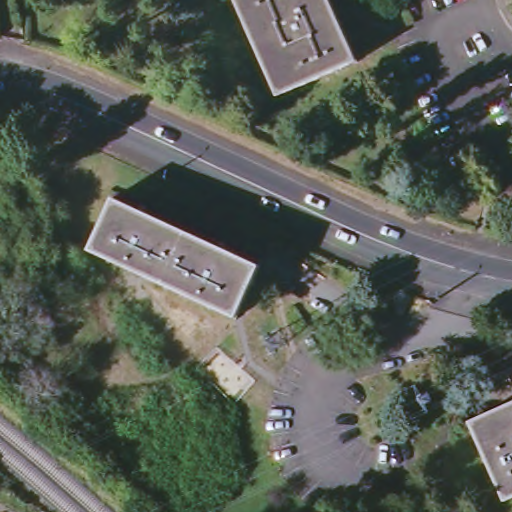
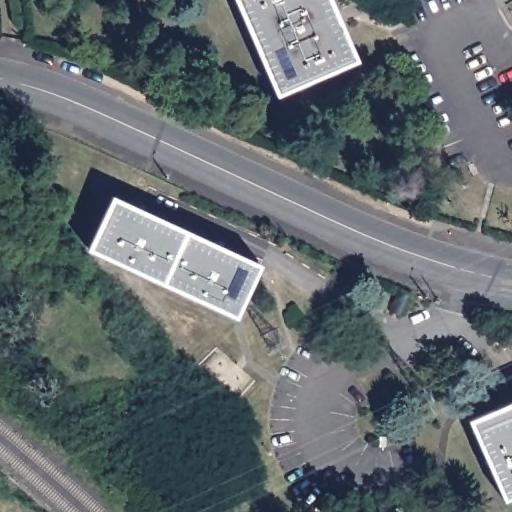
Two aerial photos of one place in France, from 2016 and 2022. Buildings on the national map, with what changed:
unchanged [(237,0),(332,0),(358,60),(278,95),(237,0)]
unchanged [(90,248),(113,197),(261,263),(237,315),(90,248)]
unchanged [(470,421),(512,402),(512,496),(504,500),(470,421)]

